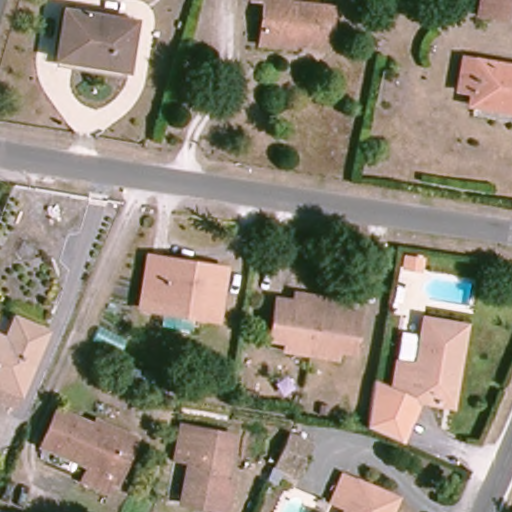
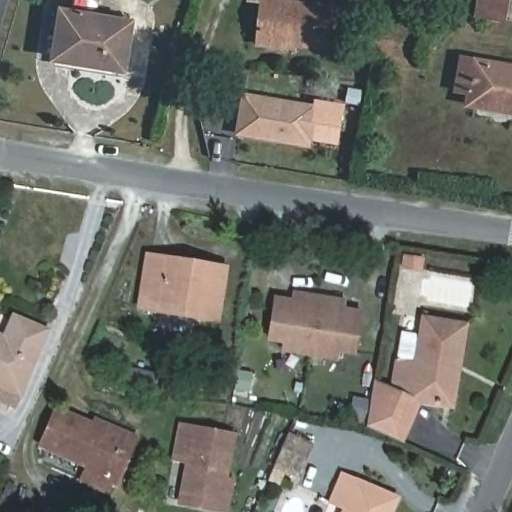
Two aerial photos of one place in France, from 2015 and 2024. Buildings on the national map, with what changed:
unchanged [(261,45),(261,40),(265,2),(252,0),(285,0),(285,4),(330,10),(326,47),(292,44),(291,48),(261,45)]
unchanged [(471,10),(473,0),(512,0),(512,18),(500,15),(471,10)]
unchanged [(132,21),(124,72),(55,60),(63,10),(132,21)]
unchanged [(512,112),(468,105),(471,91),(458,90),(463,60),(512,68),(512,112)]
new [(233,135),(242,92),(318,104),(311,146),(233,135)]
unchanged [(216,320),(138,307),(146,255),(164,258),(202,265),(223,268),(216,320)]
unchanged [(294,352),(286,350),(287,341),(272,340),(278,298),(295,301),(297,292),(307,293),(336,298),(347,300),(345,308),(362,311),(356,353),(341,350),(340,360),(332,358),(294,352)]
unchanged [(0,401),(0,337),(3,338),(11,317),(44,331),(16,395),(11,406),(0,401)]
unchanged [(368,406),(370,393),(371,387),(372,381),(392,385),(396,359),(400,332),(417,335),(420,318),(463,325),(457,365),(450,406),(443,405),(409,400),(397,426),(392,440),(364,427),(367,413),(368,406)]
unchanged [(115,484),(110,482),(106,491),(80,480),(86,467),(40,446),(55,410),(123,441),(132,445),(115,484)]
unchanged [(230,435),(222,479),(227,480),(221,511),(179,503),(186,462),(172,460),(179,425),(230,435)]
unchanged [(309,445),(296,473),(273,463),(286,435),(309,445)]
unchanged [(388,512),(343,512),(344,509),(330,503),(341,477),(394,497),(388,512)]

